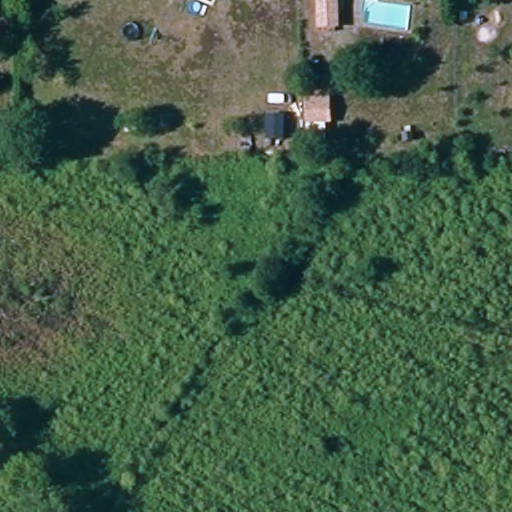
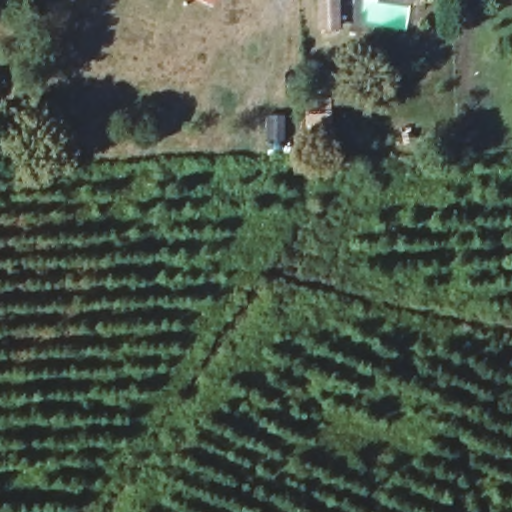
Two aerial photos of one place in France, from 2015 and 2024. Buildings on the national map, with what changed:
unchanged [(338,30),(323,30),(322,0),(338,0),(338,30)]

